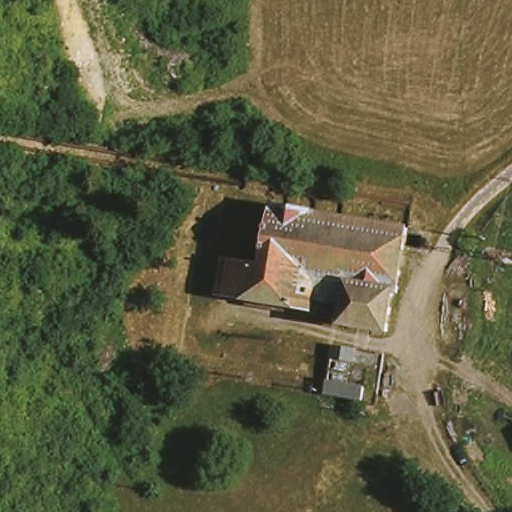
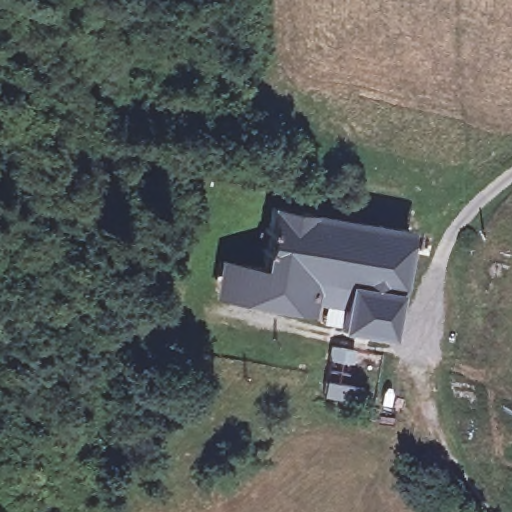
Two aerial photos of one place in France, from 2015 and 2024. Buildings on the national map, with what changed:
unchanged [(234,287),(241,257),(267,262),(280,199),(412,229),(403,273),(396,273),(385,330),(345,320),(349,297),(316,288),(311,306),(234,287)]

